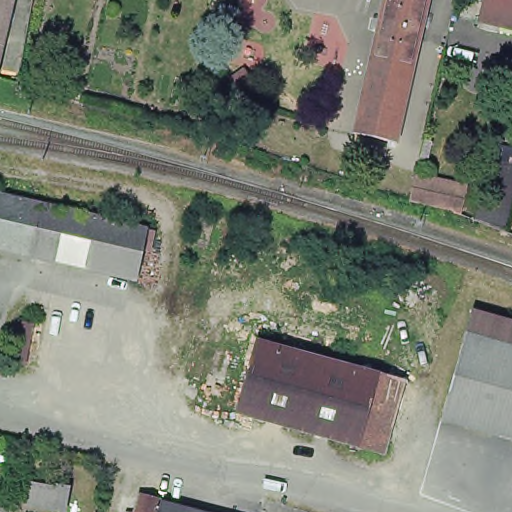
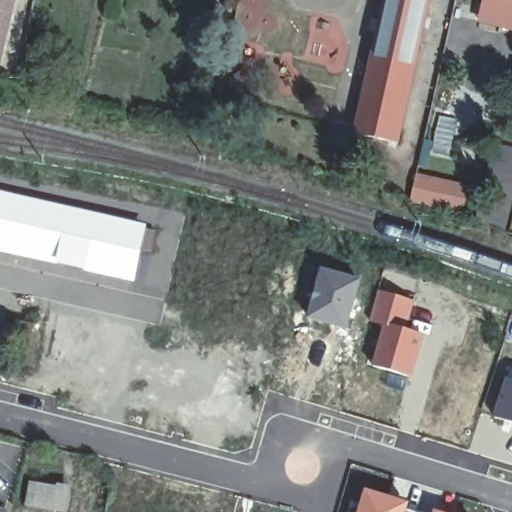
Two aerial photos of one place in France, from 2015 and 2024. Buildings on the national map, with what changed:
unchanged [(0,68),(0,0),(15,0),(0,68)]
unchanged [(220,3),(209,0),(230,0),(229,5),(220,3)]
unchanged [(395,143),(350,132),(381,0),(429,0),(395,143)]
unchanged [(472,18),(473,14),(477,0),(512,0),(512,27),(472,18)]
new [(475,221),(478,210),(496,215),(502,190),(485,185),(495,143),(512,147),(512,205),(505,229),(475,221)]
new [(473,187),(465,218),(408,203),(415,174),(473,187)]
unchanged [(0,251),(0,200),(47,210),(35,259),(0,251)]
unchanged [(144,232),(133,281),(35,259),(47,210),(144,232)]
new [(360,280),(347,331),(307,321),(320,269),(360,280)]
new [(414,300),(407,329),(424,334),(412,378),(371,366),(383,327),(370,322),(378,293),(414,300)]
unchanged [(32,324),(24,365),(7,361),(16,320),(32,324)]
demolished [(463,329),(512,343),(512,437),(438,416),(463,329)]
demolished [(240,335),(386,376),(365,449),(219,408),(240,335)]
new [(512,382),(512,424),(493,418),(504,379),(512,382)]
new [(68,512),(48,512),(24,507),(28,482),(71,489),(68,512)]
demolished [(55,502),(25,496),(18,495),(18,494),(20,488),(55,498),(55,502)]
new [(406,510),(415,512),(357,512),(364,490),(409,502),(406,510)]
demolished [(163,504),(161,512),(138,512),(142,498),(163,504)]
new [(436,512),(434,512),(434,511),(436,512)]

